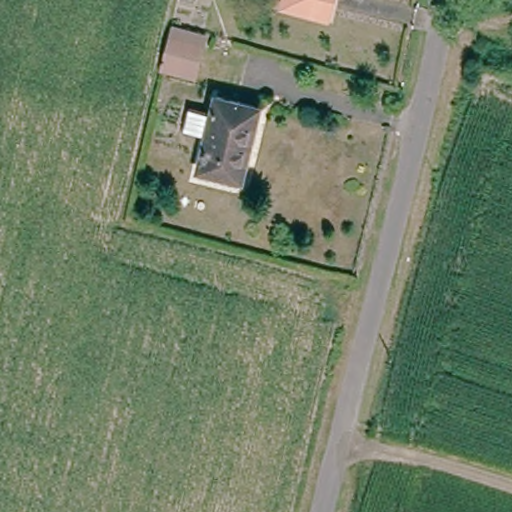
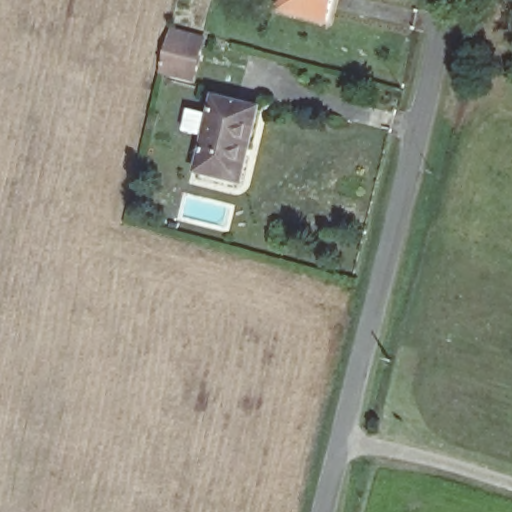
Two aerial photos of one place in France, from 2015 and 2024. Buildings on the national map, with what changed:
unchanged [(293,8),(294,0),(340,0),(335,20),(293,8)]
unchanged [(173,39),(203,45),(199,67),(198,75),(167,70),(169,61),(173,39)]
unchanged [(214,135),(223,101),(263,109),(257,145),(214,135)]
unchanged [(257,149),(249,155),(244,181),(204,174),(214,135),(257,145),(257,149)]

